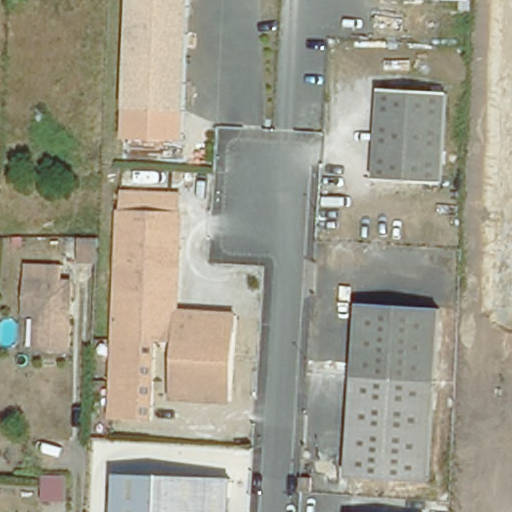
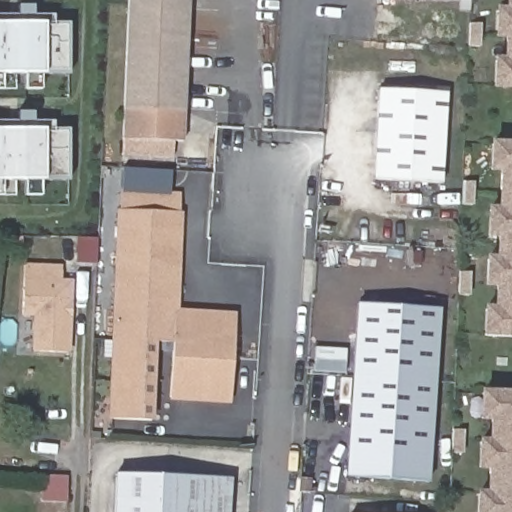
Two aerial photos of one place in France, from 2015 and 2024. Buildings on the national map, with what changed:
unchanged [(129,0),(188,0),(182,141),(173,141),(172,157),(124,155),(124,140),(129,0)]
unchanged [(471,2),(437,0),(471,0),(471,2)]
new [(493,87),(494,57),(504,57),(504,37),(494,37),(495,7),(506,7),(506,0),(512,0),(512,88),(493,87)]
new [(0,73),(0,21),(44,22),(70,22),(70,74),(45,73),(0,73)]
unchanged [(444,92),(438,182),(372,178),(377,89),(444,92)]
new [(45,180),(0,180),(0,128),(45,129),(68,129),(69,180),(45,180)]
new [(512,142),(512,337),(481,336),(483,306),(493,307),(494,287),(484,287),(485,256),(495,256),(496,237),(484,237),(486,207),(497,207),(499,171),(489,170),(490,141),(512,142)]
new [(125,168),(172,171),(170,197),(123,195),(125,168)]
unchanged [(116,352),(117,341),(123,195),(170,197),(183,198),(177,313),(238,316),(236,360),(234,401),(174,398),(176,356),(176,343),(158,343),(157,355),(154,422),(114,420),(116,352)]
unchanged [(100,243),(100,246),(99,268),(79,267),(80,243),(100,243)]
unchanged [(60,266),(59,282),(69,283),(66,352),(33,351),(35,314),(21,313),(23,264),(60,266)]
unchanged [(425,481),(346,477),(354,305),(433,308),(425,481)]
new [(475,512),(476,490),(486,491),(487,469),(477,468),(478,440),(489,441),(490,420),(479,420),(480,390),(512,391),(512,512),(475,512)]
unchanged [(68,475),(68,500),(44,499),(45,473),(68,475)]
unchanged [(312,475),(311,491),(301,490),(302,473),(312,475)]
unchanged [(229,480),(227,512),(118,512),(120,474),(229,480)]
demolished [(512,493),(512,512),(510,512),(511,493),(512,493)]

